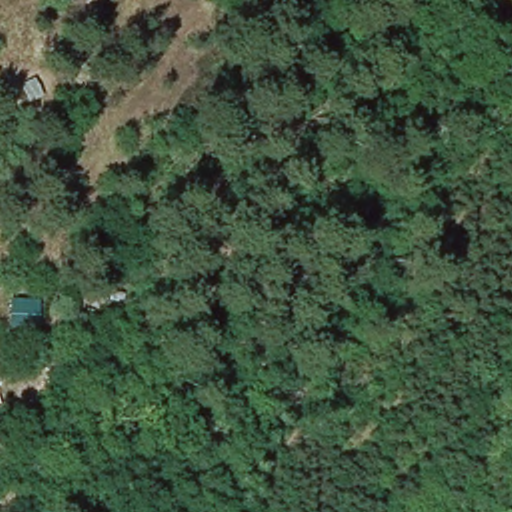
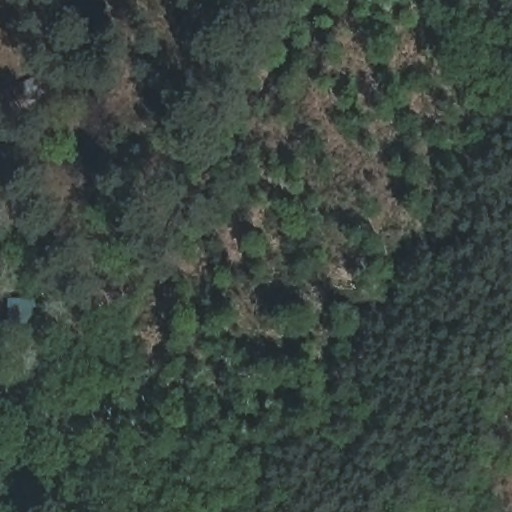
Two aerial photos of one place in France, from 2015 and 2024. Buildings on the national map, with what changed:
unchanged [(123,288),(119,314),(94,310),(97,285),(123,288)]
unchanged [(0,402),(0,389),(4,401),(0,402)]

